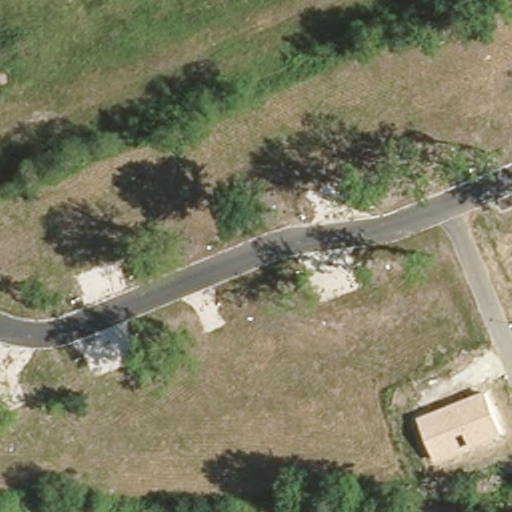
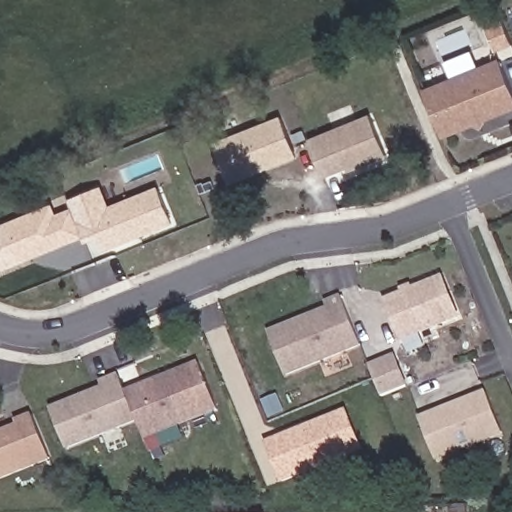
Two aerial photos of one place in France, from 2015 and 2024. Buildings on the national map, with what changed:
new [(441,134),(422,88),(498,57),(512,91),(512,106),(441,134)]
new [(295,156),(230,181),(215,142),(281,117),(295,156)]
new [(386,154),(351,168),(348,164),(325,174),(312,141),(369,118),(386,154)]
new [(97,187),(107,208),(155,189),(169,222),(102,249),(80,194),(97,187)]
new [(53,215),(70,208),(81,235),(0,267),(0,225),(49,205),(53,215)]
new [(397,288),(416,281),(417,285),(438,276),(453,316),(397,339),(381,299),(399,292),(397,288)]
new [(264,330),(324,307),(322,301),(337,295),(357,343),(281,373),(264,330)]
new [(196,361),(214,407),(142,436),(134,416),(124,390),(196,361)]
new [(101,384),(99,379),(116,372),(124,390),(134,416),(65,444),(49,405),(101,384)]
unchanged [(435,460),(418,418),(487,391),(505,434),(435,460)]
new [(277,479),(261,439),(341,408),(356,447),(277,479)]
new [(12,420),(28,414),(46,459),(0,477),(0,431),(14,425),(12,420)]

